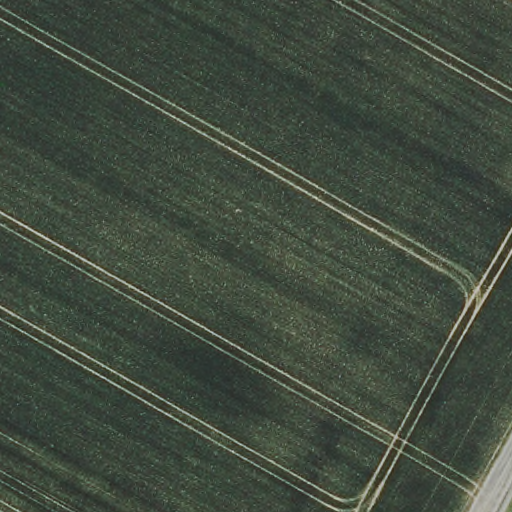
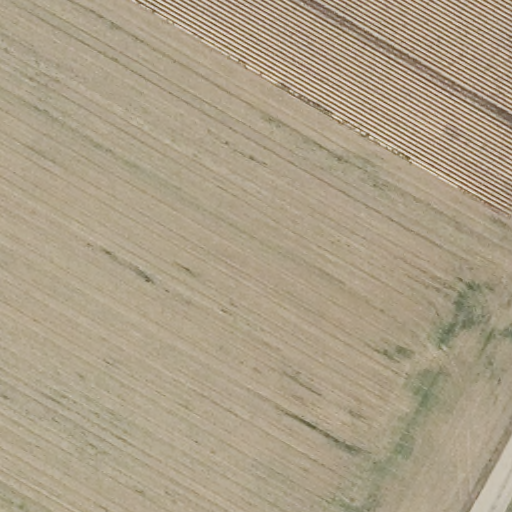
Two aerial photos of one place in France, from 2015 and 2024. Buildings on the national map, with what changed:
[]

